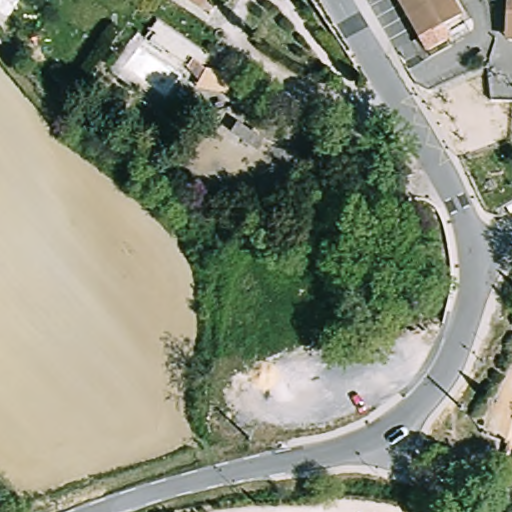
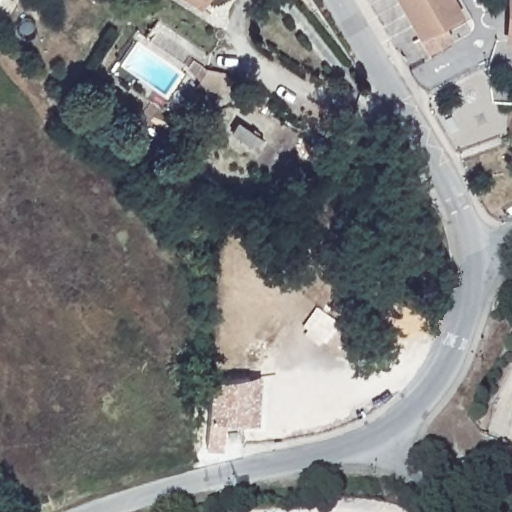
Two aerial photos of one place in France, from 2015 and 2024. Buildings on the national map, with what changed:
unchanged [(207,7),(192,0),(210,0),(207,7)]
unchanged [(439,46),(425,54),(417,38),(397,0),(448,0),(457,17),(438,27),(446,42),(439,46)]
unchanged [(505,39),(511,0),(512,0),(512,40),(505,39)]
unchanged [(195,45),(189,59),(149,38),(156,23),(195,45)]
unchanged [(297,136),(286,156),(278,152),(272,160),(231,135),(248,109),(297,136)]
unchanged [(497,185),(503,195),(490,202),(484,193),(497,185)]
new [(208,381),(247,376),(262,374),(257,425),(242,426),(225,422),(224,449),(206,448),(207,421),(208,381)]

